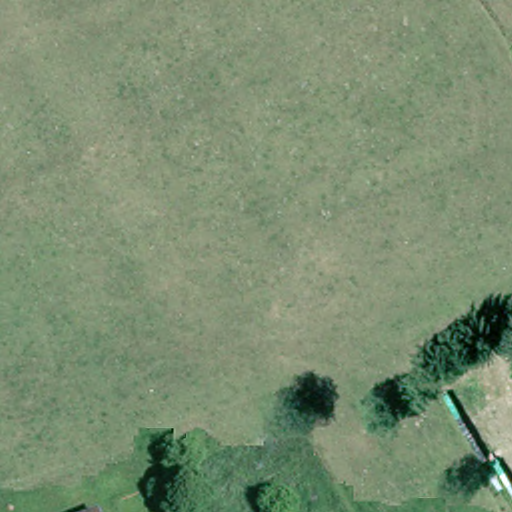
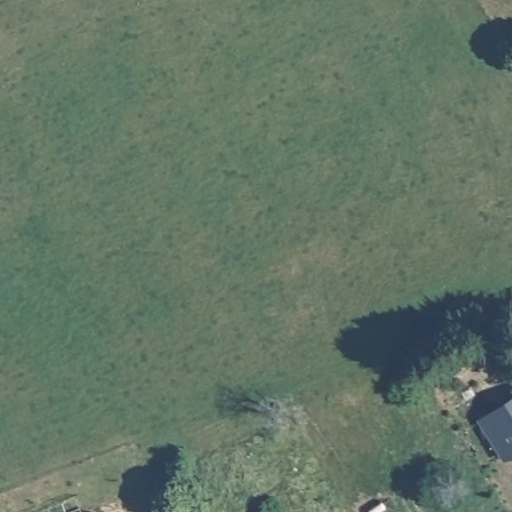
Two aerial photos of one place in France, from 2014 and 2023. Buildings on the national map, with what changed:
new [(512,456),(507,459),(480,418),(512,397),(512,456)]
unchanged [(103,508),(105,512),(95,512),(103,508)]

